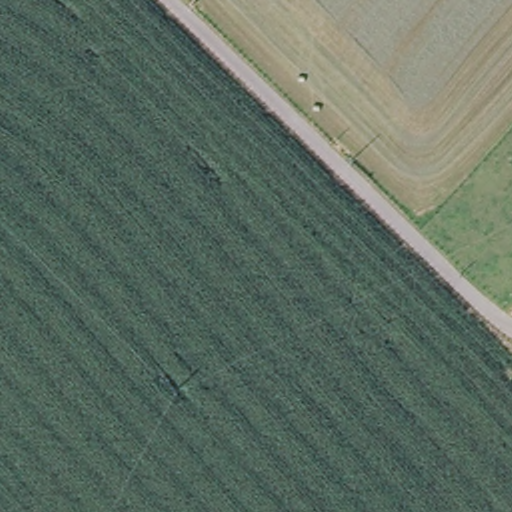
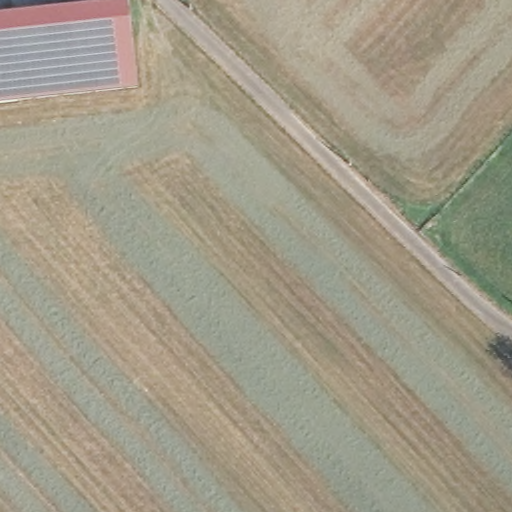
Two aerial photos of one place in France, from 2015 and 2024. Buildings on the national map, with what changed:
new [(131,2),(141,91),(0,107),(0,17),(131,2)]

